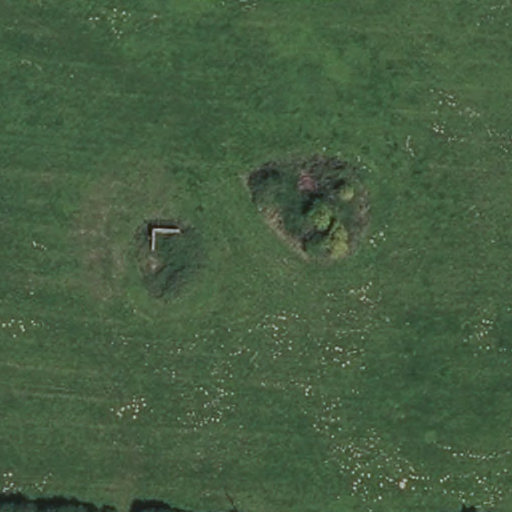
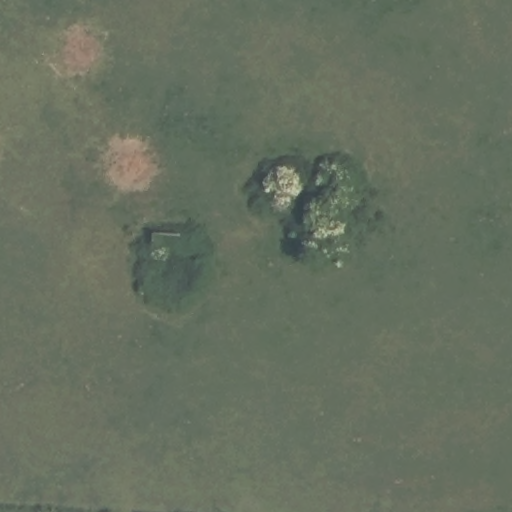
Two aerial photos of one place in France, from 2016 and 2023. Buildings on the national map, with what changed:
unchanged [(187,225),(185,283),(152,280),(156,222),(187,225)]

